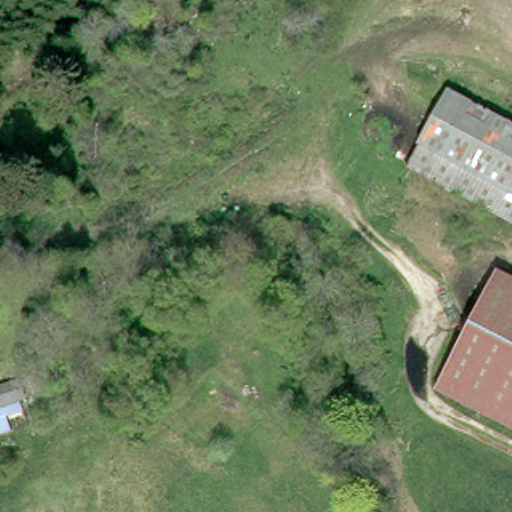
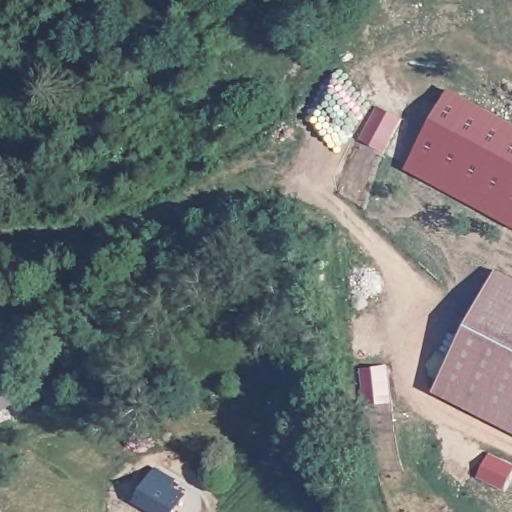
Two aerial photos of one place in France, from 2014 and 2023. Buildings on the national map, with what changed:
unchanged [(451,98),(512,129),(512,225),(412,173),(451,98)]
unchanged [(512,280),(512,428),(437,391),(497,273),(512,280)]
unchanged [(17,381),(22,397),(0,405),(0,387),(17,381)]
new [(154,471),(170,480),(165,487),(180,496),(171,512),(153,512),(136,502),(150,478),(154,471)]

